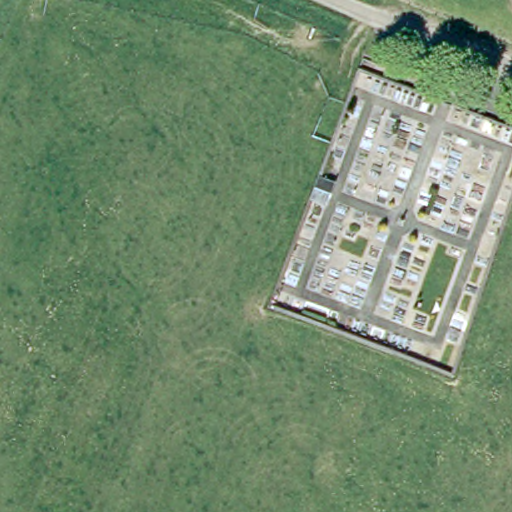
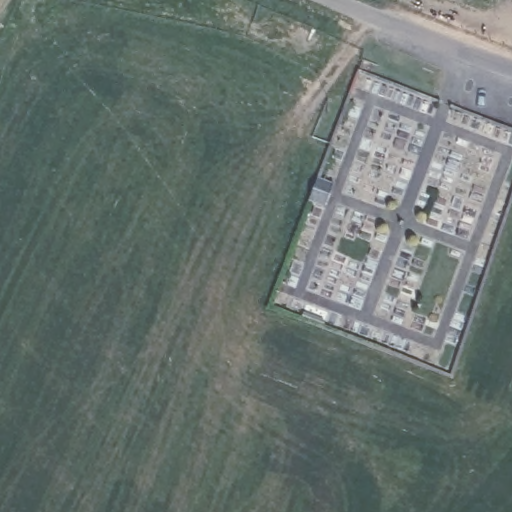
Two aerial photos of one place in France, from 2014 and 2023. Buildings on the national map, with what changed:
unchanged [(344,179),(334,202),(315,194),(324,169),(344,179)]

